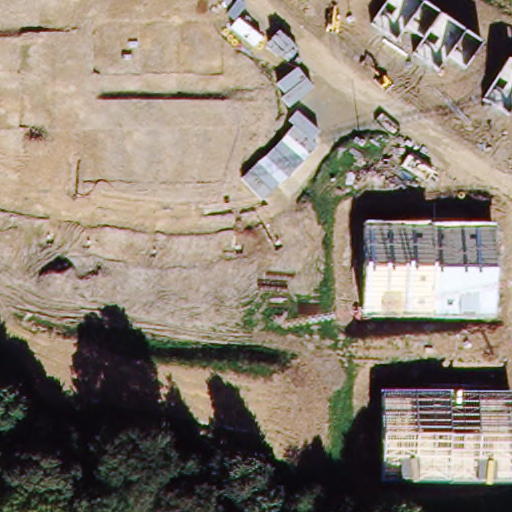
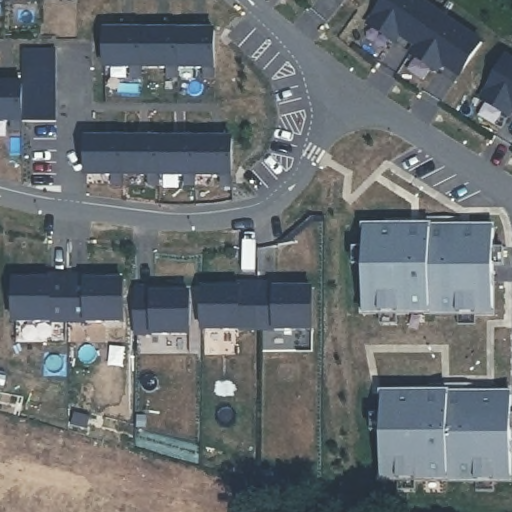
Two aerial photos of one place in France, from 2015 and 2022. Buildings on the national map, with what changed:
unchanged [(464,69),(447,57),(437,71),(413,53),(420,39),(405,28),(396,40),(371,25),(389,0),(414,0),(480,43),(464,69)]
new [(108,33),(218,33),(218,79),(207,79),(207,70),(182,70),(182,79),(171,79),(171,70),(145,70),(145,79),(135,79),(135,70),(108,70),(108,33)]
new [(27,52),(60,52),(60,124),(27,124),(27,133),(15,133),(15,124),(0,124),(0,87),(26,87),(27,52)]
unchanged [(509,114),(483,100),(508,61),(512,64),(512,109),(509,114)]
new [(90,141),(236,142),(235,188),(225,188),(225,179),(200,179),(200,188),(189,188),(189,179),(163,179),(163,188),(152,187),(153,179),(127,178),(127,187),(117,187),(117,178),(90,178),(90,141)]
unchanged [(495,225),(494,316),(362,317),(365,224),(495,225)]
new [(35,284),(35,278),(53,279),(72,279),(72,325),(17,324),(17,283),(35,284)]
new [(92,279),(110,279),(110,285),(127,285),(127,326),(72,325),(72,279),(92,279)]
new [(225,290),(225,285),(243,285),(261,285),(261,331),(207,331),(207,290),(225,290)]
new [(280,285),(298,285),(298,291),(317,291),(316,332),(261,331),(261,285),(280,285)]
new [(157,291),(176,292),(175,297),(193,297),(192,338),(137,337),(138,291),(157,291)]
unchanged [(512,392),(512,483),(381,483),(382,392),(512,392)]

